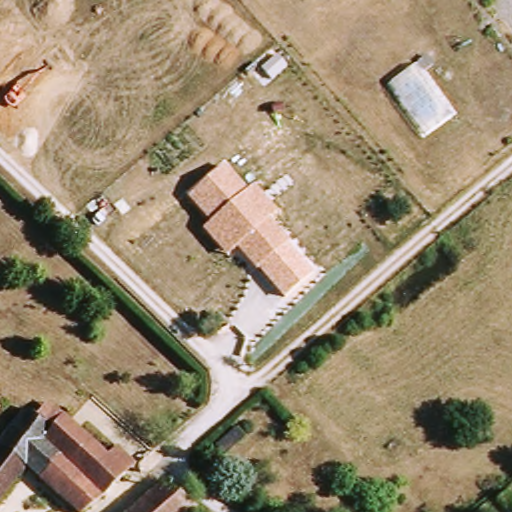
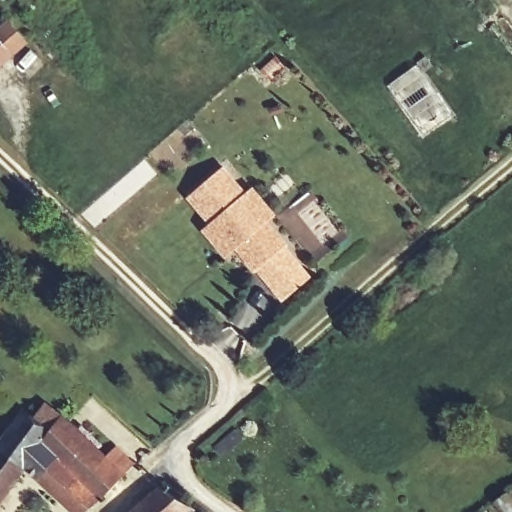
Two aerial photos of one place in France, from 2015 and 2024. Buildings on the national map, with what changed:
new [(7,20),(27,43),(0,67),(0,27),(7,20)]
unchanged [(247,193),(255,186),(277,214),(269,222),(313,276),(282,303),(237,248),(226,259),(202,230),(210,223),(190,197),(226,167),(247,193)]
unchanged [(132,480),(98,512),(77,512),(32,467),(0,508),(0,455),(34,414),(59,432),(66,422),(132,480)]
unchanged [(165,488),(203,511),(202,512),(135,512),(165,488)]

